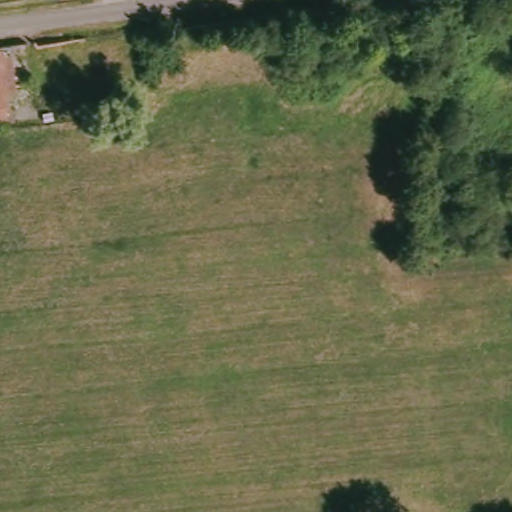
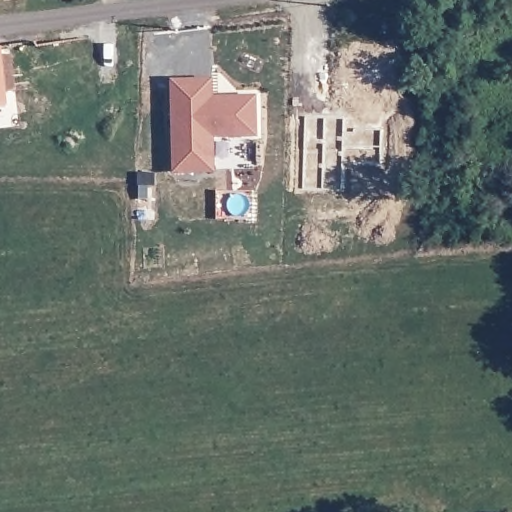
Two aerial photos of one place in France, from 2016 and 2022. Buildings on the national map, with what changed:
unchanged [(4,112),(0,112),(0,66),(4,112)]
new [(170,79),(214,78),(214,95),(256,95),(257,131),(213,133),(214,169),(172,168),(170,79)]

